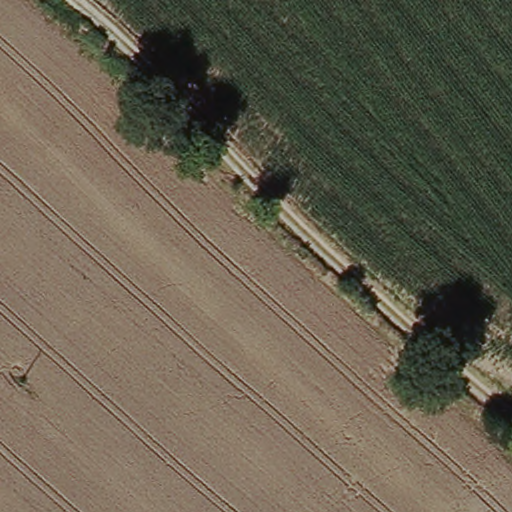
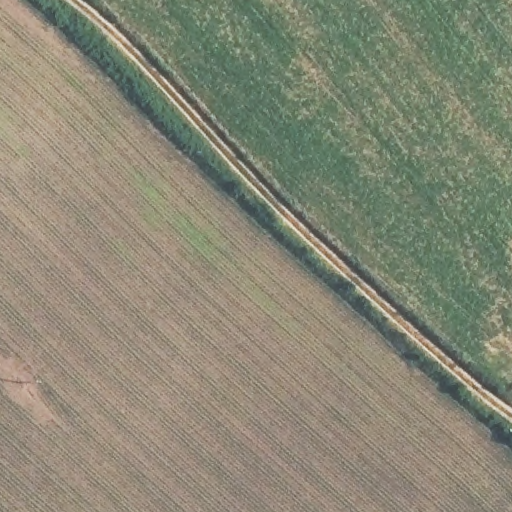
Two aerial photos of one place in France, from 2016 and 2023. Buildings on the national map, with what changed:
[]

